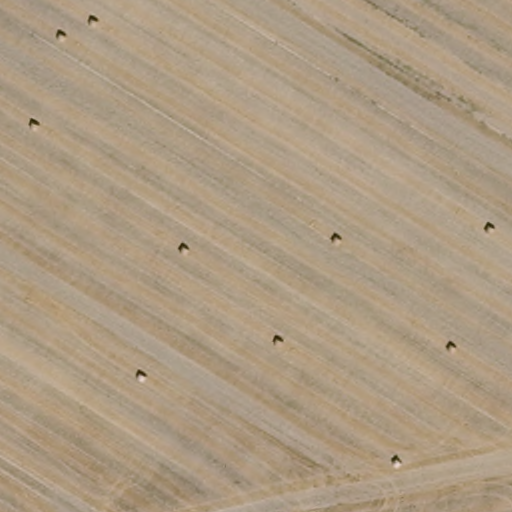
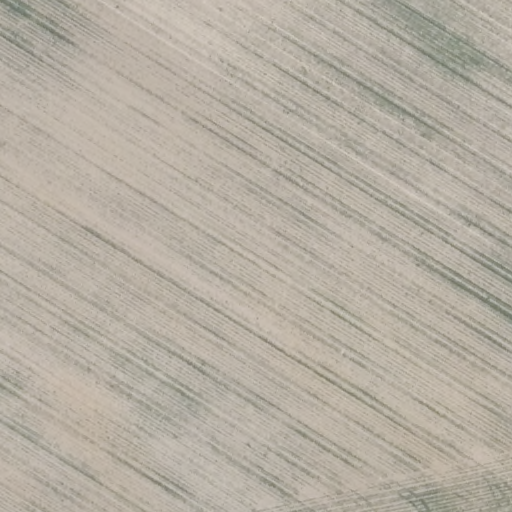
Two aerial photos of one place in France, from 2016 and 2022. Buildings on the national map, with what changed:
[]

